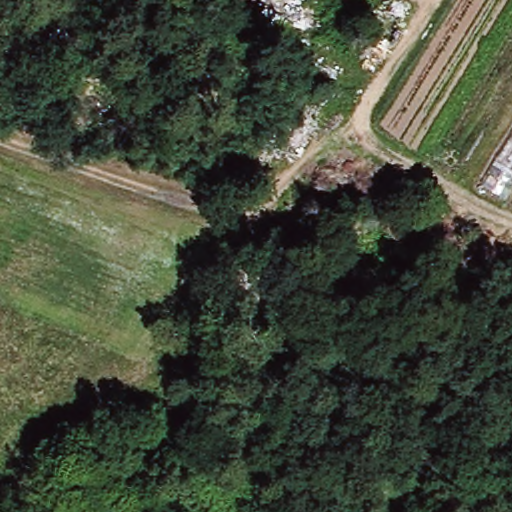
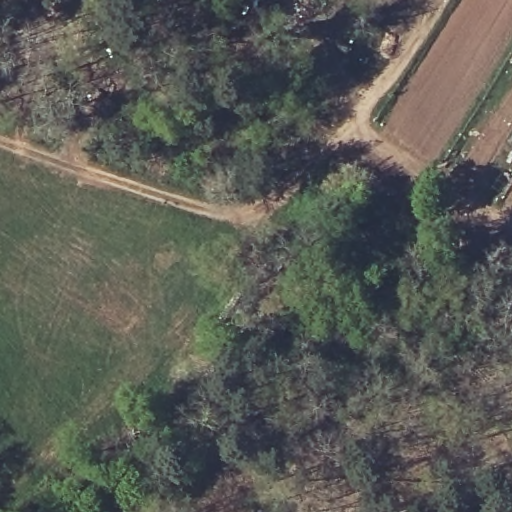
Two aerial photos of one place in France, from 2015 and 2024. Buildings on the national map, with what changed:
unchanged [(512,133),(512,183),(504,196),(481,181),(512,133)]

